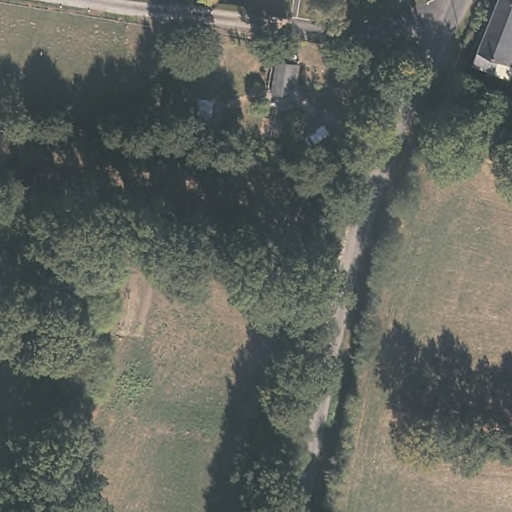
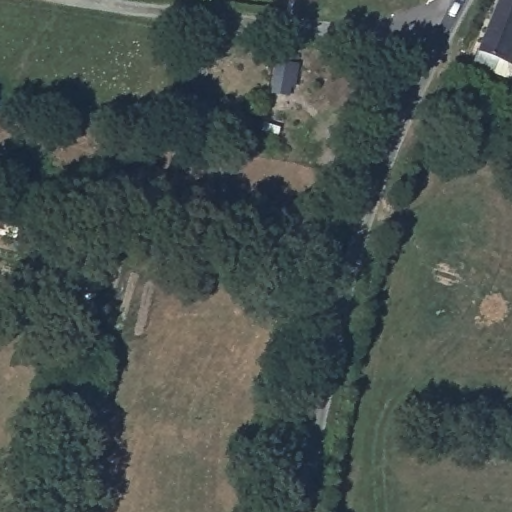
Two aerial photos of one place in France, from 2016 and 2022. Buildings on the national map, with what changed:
unchanged [(475,66),(500,0),(512,0),(512,79),(511,80),(475,66)]
unchanged [(296,67),(294,88),(278,86),(280,66),(296,67)]
unchanged [(445,78),(465,86),(444,134),(424,126),(445,78)]

